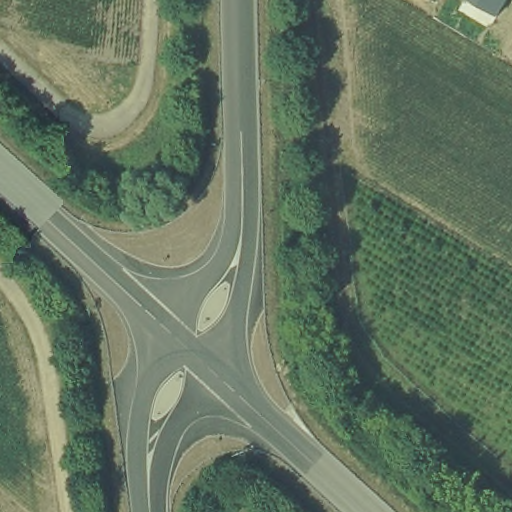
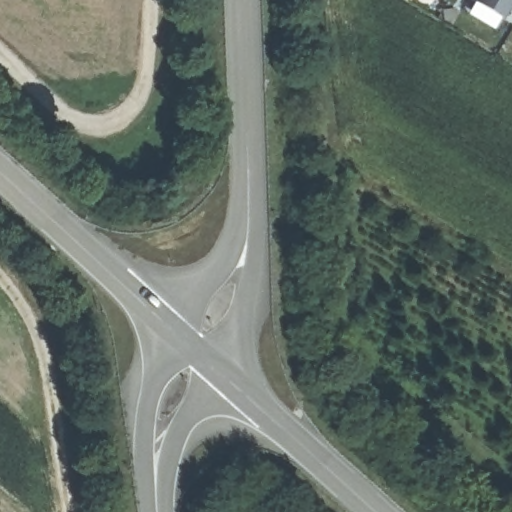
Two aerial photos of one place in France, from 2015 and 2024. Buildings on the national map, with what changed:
unchanged [(470,0),(512,0),(512,3),(502,20),(470,0)]

